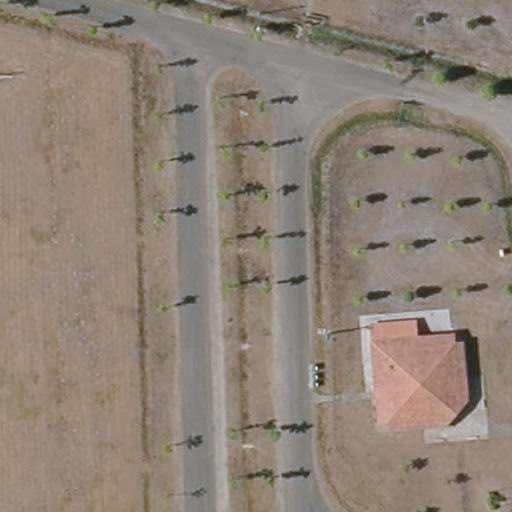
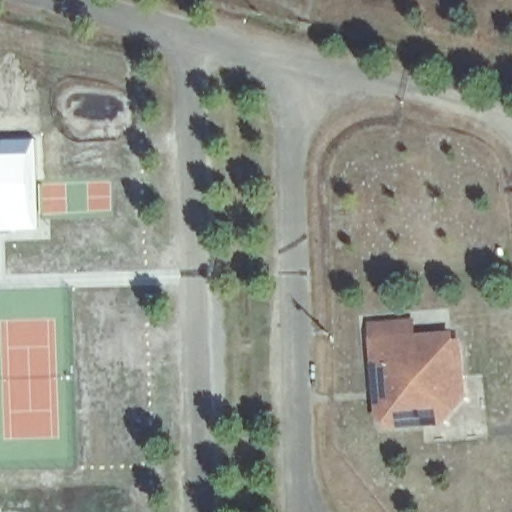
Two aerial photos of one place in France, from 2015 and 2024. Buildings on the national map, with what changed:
new [(40,230),(0,231),(0,139),(35,137),(40,230)]
unchanged [(451,352),(462,351),(465,411),(450,432),(391,434),(375,425),(371,347),(370,330),(393,329),(415,328),(416,345),(451,343),(451,352)]

